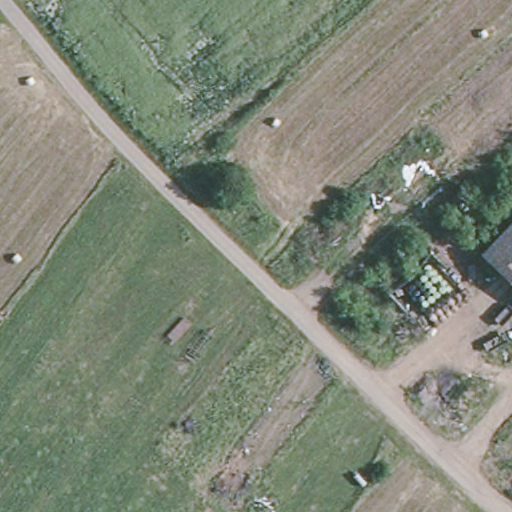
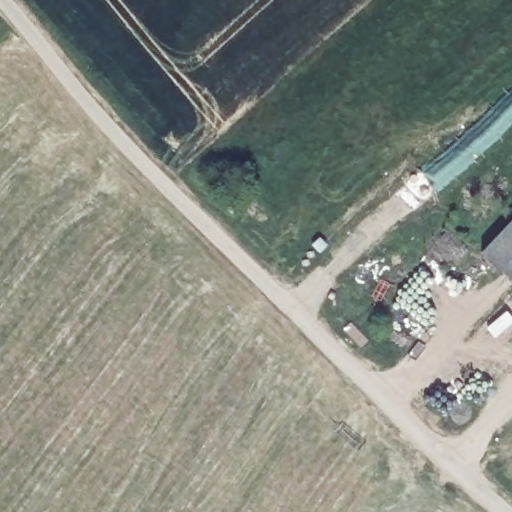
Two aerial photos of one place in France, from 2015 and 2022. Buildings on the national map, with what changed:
unchanged [(512,214),(512,283),(474,252),(512,214)]
unchanged [(448,270),(404,309),(383,290),(429,249),(448,270)]
unchanged [(476,325),(512,291),(512,332),(497,347),(476,325)]

